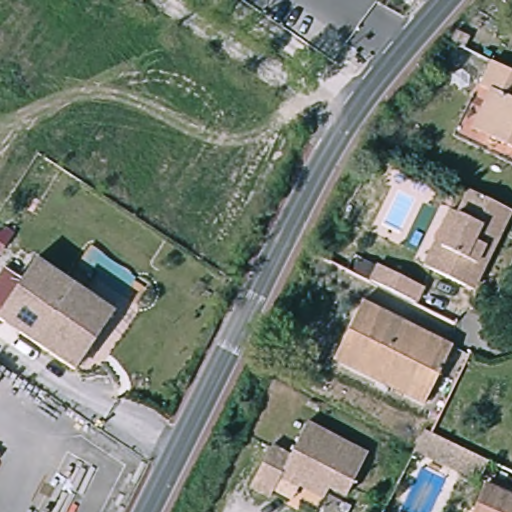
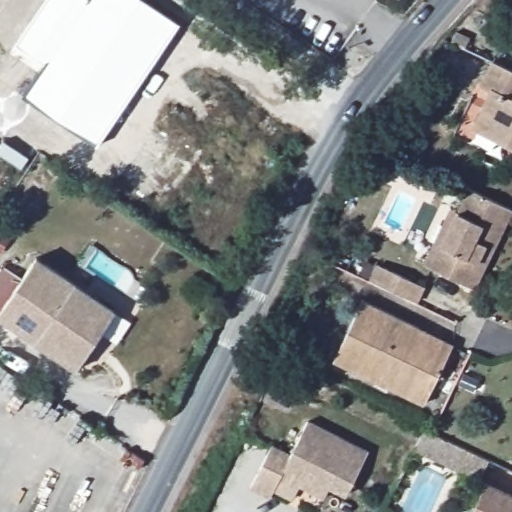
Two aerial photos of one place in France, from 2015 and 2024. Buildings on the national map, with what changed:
new [(21,95),(44,61),(15,44),(44,0),(145,0),(178,23),(96,145),(21,95)]
unchanged [(485,88),(496,65),(512,72),(512,146),(479,130),(495,94),(485,88)]
unchanged [(512,211),(512,218),(499,247),(489,244),(470,285),(436,268),(472,193),(512,211)]
unchanged [(0,319),(0,312),(36,260),(114,312),(75,370),(0,319)]
unchanged [(367,285),(375,267),(420,288),(412,305),(367,285)]
unchanged [(345,350),(366,305),(454,347),(428,405),(403,394),(409,380),(345,350)]
unchanged [(303,484),(302,487),(282,477),(274,495),(254,486),(275,444),(295,454),(311,420),(371,450),(350,493),(332,485),(328,495),(303,484)]
unchanged [(487,460),(477,480),(413,452),(425,428),(487,460)]
unchanged [(512,495),(512,512),(478,512),(491,485),(512,495)]

